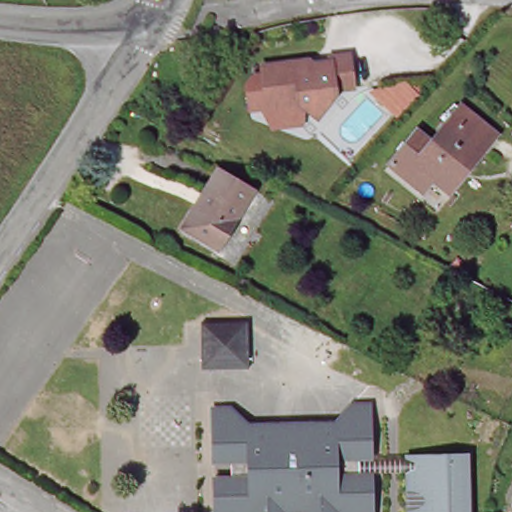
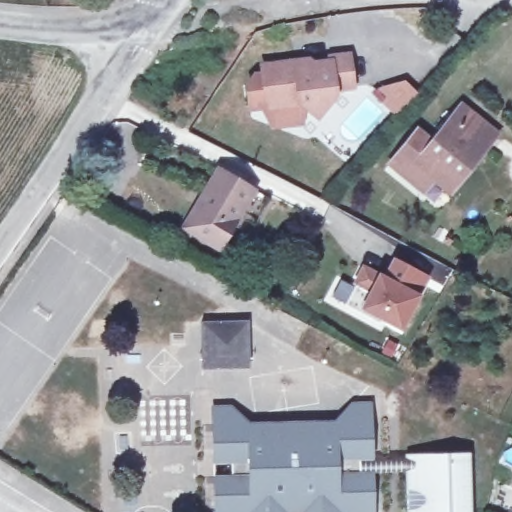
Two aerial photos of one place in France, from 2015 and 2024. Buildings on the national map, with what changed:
unchanged [(345,84),(330,87),(310,116),(288,103),(265,106),(255,64),(290,59),(291,65),(320,61),(321,55),(340,54),(345,84)]
unchanged [(494,134),(463,169),(455,164),(427,200),(384,161),(415,127),(432,142),(465,109),(494,134)]
unchanged [(247,189),(215,250),(180,229),(211,170),(247,189)]
new [(377,321),(343,305),(353,285),(350,284),(361,263),(381,273),(391,257),(430,276),(420,294),(400,331),(375,317),(377,321)]
unchanged [(244,370),(195,370),(195,323),(243,323),(244,370)]
unchanged [(248,421),(345,418),(359,403),(375,403),(377,457),(364,458),(363,478),(379,477),(378,512),(216,512),(216,481),(232,480),(232,462),(216,462),(215,406),(232,406),(248,421)]
unchanged [(425,450),(426,512),(406,512),(405,449),(425,450)]
unchanged [(462,450),(465,512),(426,512),(425,450),(462,450)]

